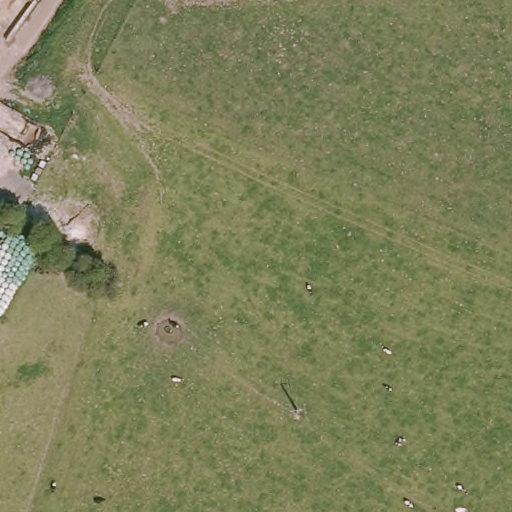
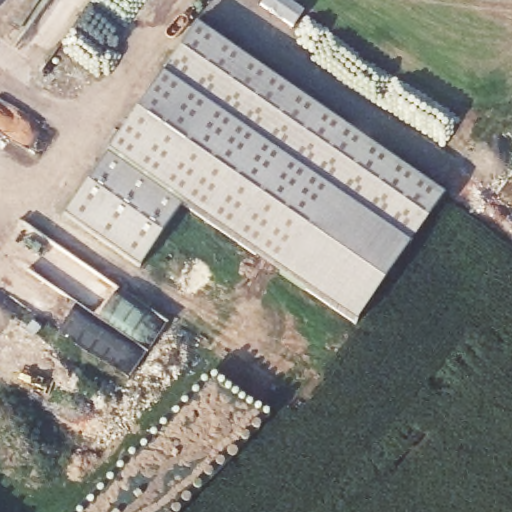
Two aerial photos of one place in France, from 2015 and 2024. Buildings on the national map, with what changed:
unchanged [(0,4),(0,0),(14,0),(7,9),(0,4)]
new [(195,24),(440,194),(354,322),(182,202),(139,262),(64,214),(195,24)]

